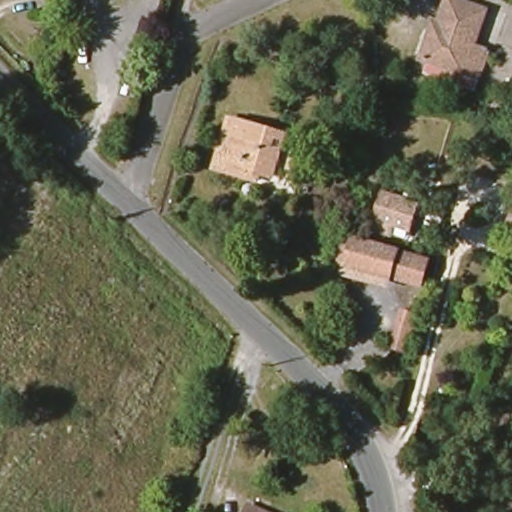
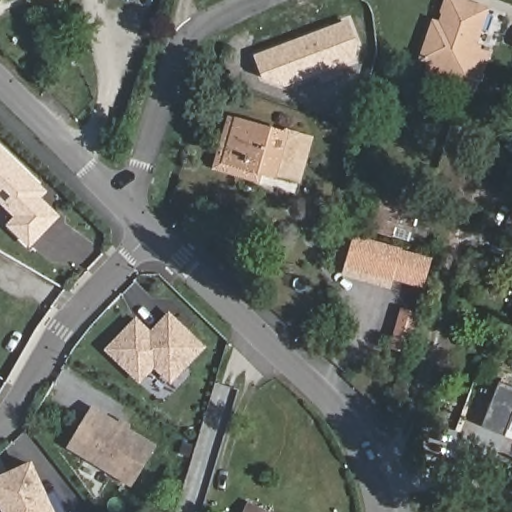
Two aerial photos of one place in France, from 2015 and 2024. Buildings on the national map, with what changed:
unchanged [(440,26),(451,0),(465,0),(493,9),(476,54),(490,59),(481,88),(422,65),(436,24),(440,26)]
new [(348,19),(361,53),(348,64),(283,89),(279,78),(263,84),(252,55),(348,19)]
unchanged [(427,103),(419,132),(380,120),(385,105),(369,97),(427,103)]
unchanged [(251,179),(217,169),(232,117),(289,133),(290,132),(302,135),(292,170),(281,167),(278,176),(267,172),(263,183),(251,179)]
new [(30,248),(5,226),(13,218),(0,205),(0,146),(47,191),(41,198),(60,216),(30,248)]
unchanged [(419,205),(410,227),(374,215),(383,192),(419,205)]
unchanged [(347,264),(355,236),(428,259),(422,286),(347,264)]
new [(170,384),(154,369),(140,384),(104,351),(136,318),(150,330),(169,311),(206,347),(170,384)]
unchanged [(422,319),(411,353),(396,350),(406,314),(422,319)]
new [(500,433),(483,427),(500,384),(512,389),(512,411),(509,410),(500,433)]
new [(131,487),(67,448),(92,405),(156,445),(131,487)]
new [(0,507),(0,476),(32,461),(56,512),(2,512),(0,507)]
unchanged [(257,512),(249,512),(250,509),(257,512)]

